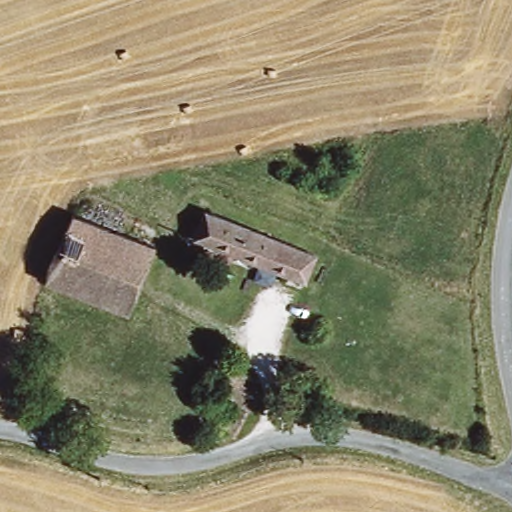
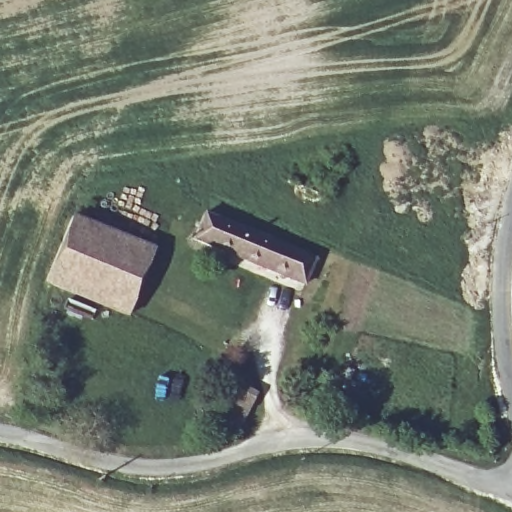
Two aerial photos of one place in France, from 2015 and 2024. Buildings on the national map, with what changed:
unchanged [(203,214),(312,258),(300,287),(192,243),(203,214)]
unchanged [(124,320),(46,288),(73,224),(150,256),(124,320)]
unchanged [(253,439),(240,432),(251,412),(231,400),(243,380),(276,399),(253,439)]

